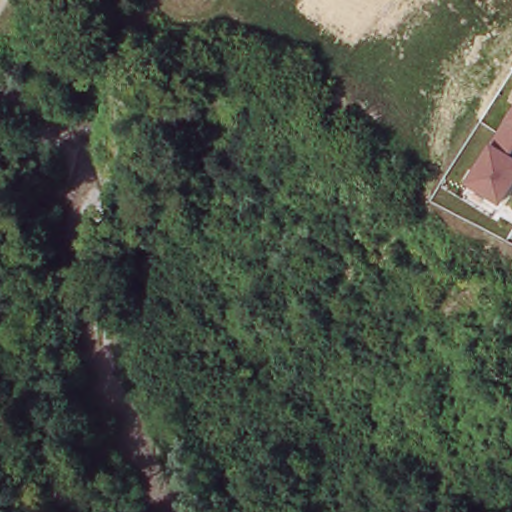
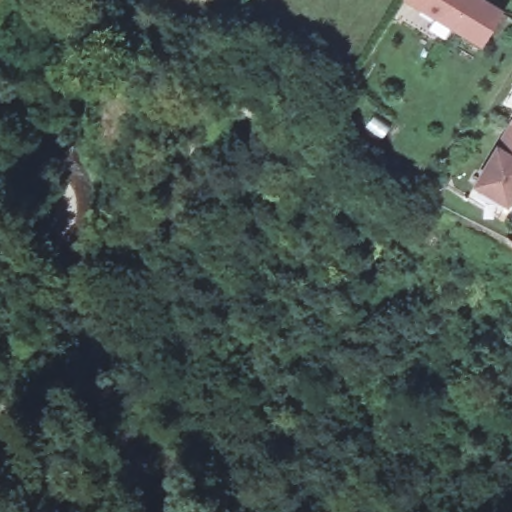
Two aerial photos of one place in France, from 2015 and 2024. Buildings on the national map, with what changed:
new [(480,47),(404,0),(486,0),(502,10),(480,47)]
unchanged [(512,118),(512,138),(504,133),(512,118)]
unchanged [(512,138),(512,197),(507,205),(474,186),(495,146),(504,133),(512,138)]

